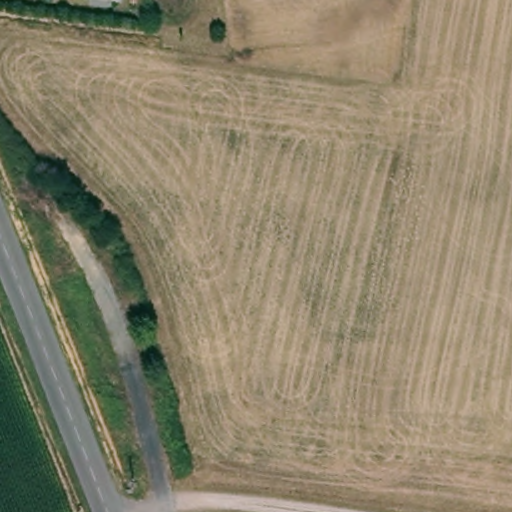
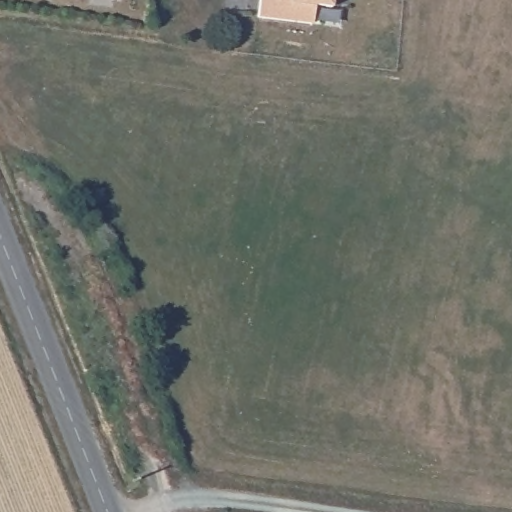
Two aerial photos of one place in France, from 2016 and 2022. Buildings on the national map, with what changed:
unchanged [(119,4),(88,0),(120,0),(119,4)]
new [(330,8),(314,6),(312,24),(258,17),(260,0),(331,0),(330,8)]

